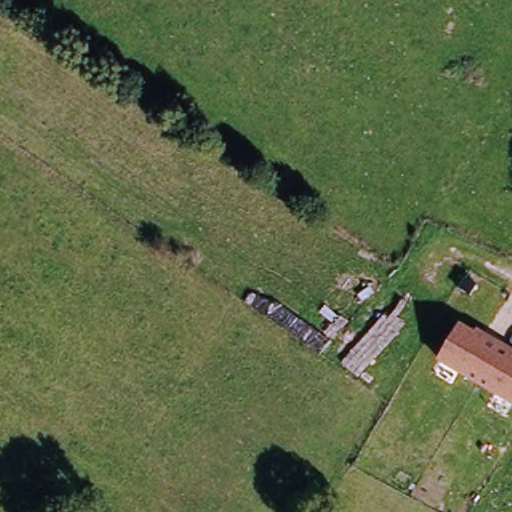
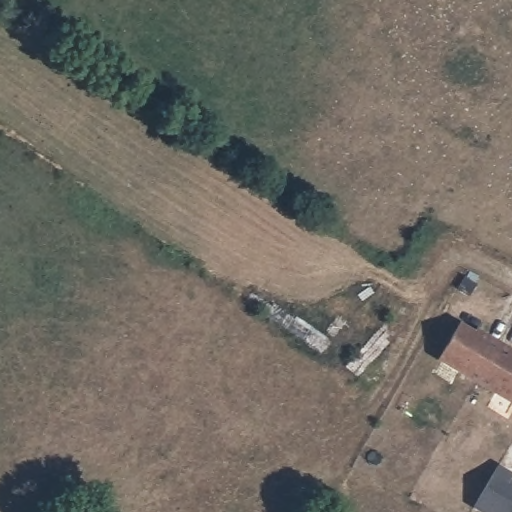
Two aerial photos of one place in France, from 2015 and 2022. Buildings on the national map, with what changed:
unchanged [(480,326),(512,345),(512,404),(458,376),(451,387),(434,378),(442,366),(436,363),(460,322),(477,331),(480,326)]
new [(501,465),(512,471),(512,477),(511,479),(512,479),(512,512),(487,512),(477,506),(501,465)]

